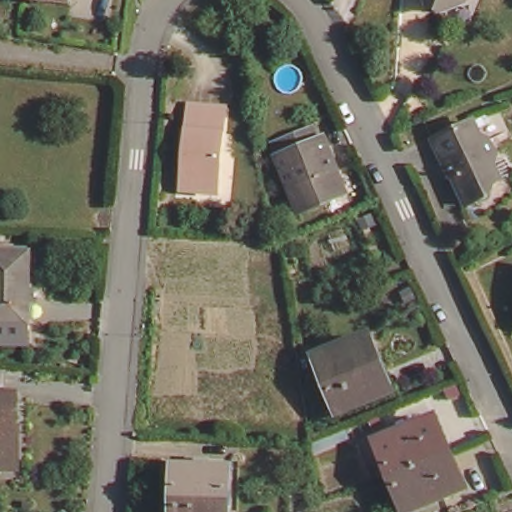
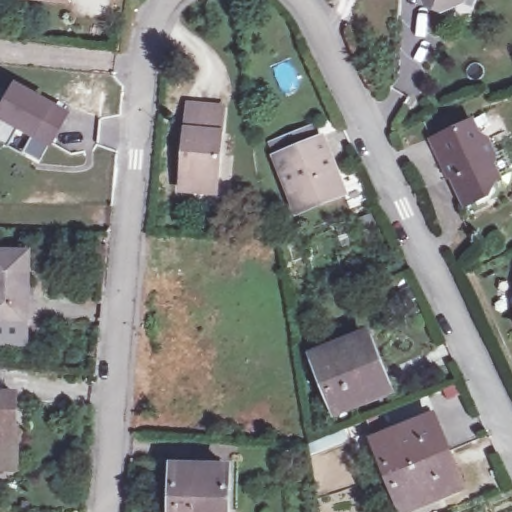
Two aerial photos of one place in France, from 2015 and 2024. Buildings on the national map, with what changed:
unchanged [(25,0),(65,0),(65,5),(25,0)]
unchanged [(442,16),(428,11),(423,0),(462,0),(460,9),(442,16)]
new [(36,140),(17,130),(8,147),(0,142),(0,108),(15,81),(57,104),(72,111),(52,147),(36,140)]
unchanged [(186,130),(190,105),(200,105),(224,108),(220,135),(218,156),(215,192),(192,190),(180,189),(182,176),(186,130)]
unchanged [(442,141),(480,121),(490,142),(497,138),(505,155),(499,157),(510,180),(492,187),(495,195),(475,205),(455,162),(452,164),(442,141)]
unchanged [(344,207),(305,224),(284,169),(278,154),(320,137),(325,152),(330,150),(343,182),(352,204),(344,207)]
unchanged [(34,327),(0,327),(0,258),(33,258),(34,327)]
unchanged [(378,392),(337,408),(316,354),(363,333),(377,366),(385,388),(378,392)]
unchanged [(23,431),(27,431),(25,477),(0,476),(0,402),(24,402),(23,431)]
unchanged [(380,444),(435,420),(450,455),(465,492),(417,512),(408,512),(395,479),(380,444)]
unchanged [(180,464),(202,465),(202,457),(227,459),(227,467),(233,468),(229,512),(176,512),(180,464)]

